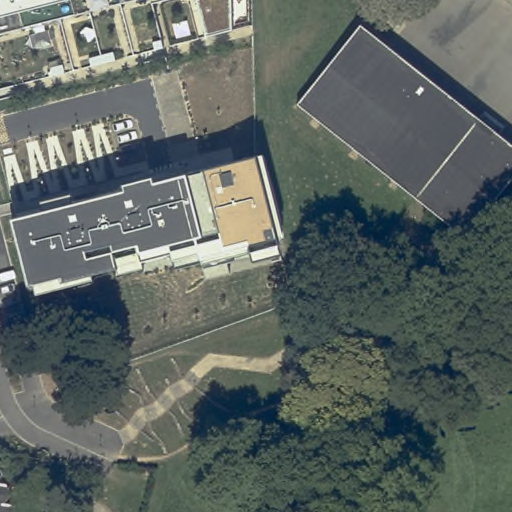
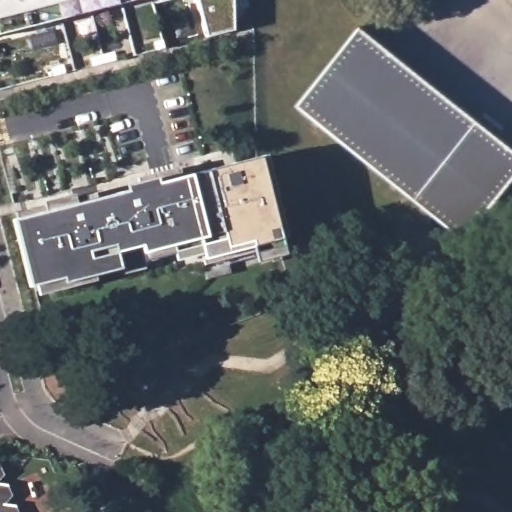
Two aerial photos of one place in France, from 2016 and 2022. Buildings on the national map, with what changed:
unchanged [(0,34),(0,0),(137,0),(0,34)]
unchanged [(233,31),(207,39),(197,0),(232,0),(233,31)]
unchanged [(512,190),(473,240),(304,107),(367,28),(512,143),(512,190)]
unchanged [(282,237),(275,238),(278,253),(250,261),(248,253),(199,263),(197,253),(170,260),(168,253),(142,261),(142,269),(113,276),(114,268),(62,282),(60,277),(28,285),(11,221),(123,191),(121,185),(150,178),(152,183),(185,175),(254,157),(262,155),(282,237)]
unchanged [(5,469),(8,478),(2,485),(12,487),(16,499),(9,507),(20,509),(21,512),(0,512),(0,468),(5,469)]

